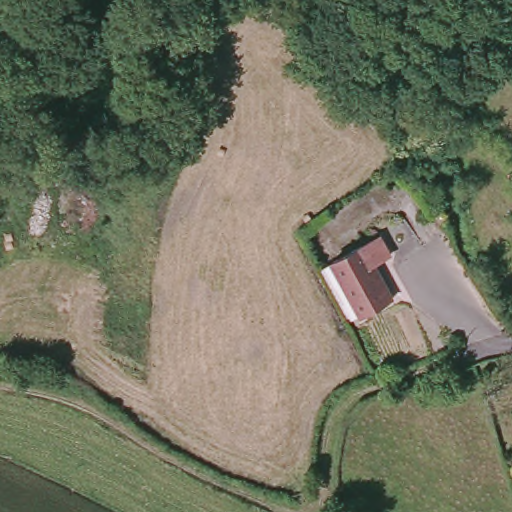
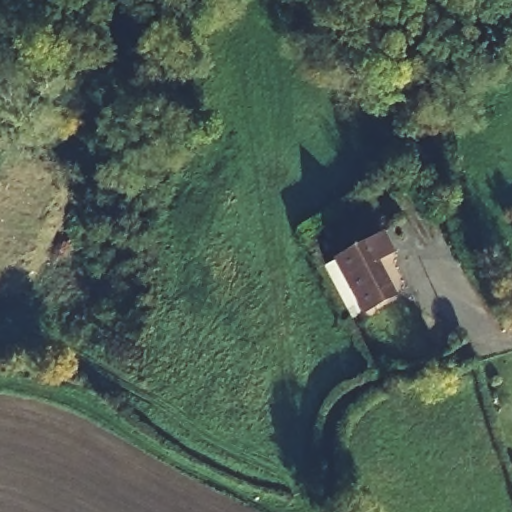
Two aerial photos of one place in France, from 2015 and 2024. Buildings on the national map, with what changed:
unchanged [(376,237),(390,261),(371,270),(390,302),(354,320),(325,264),(376,237)]

